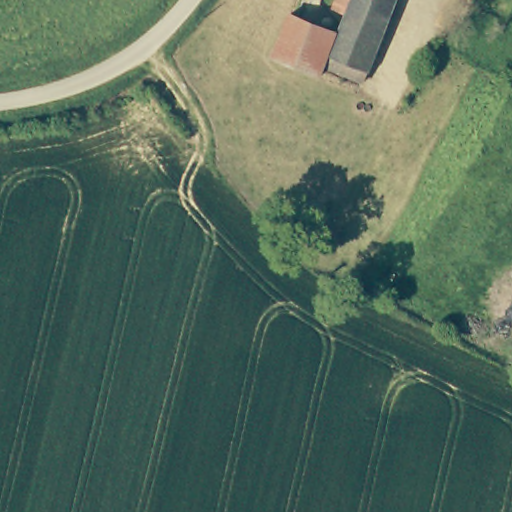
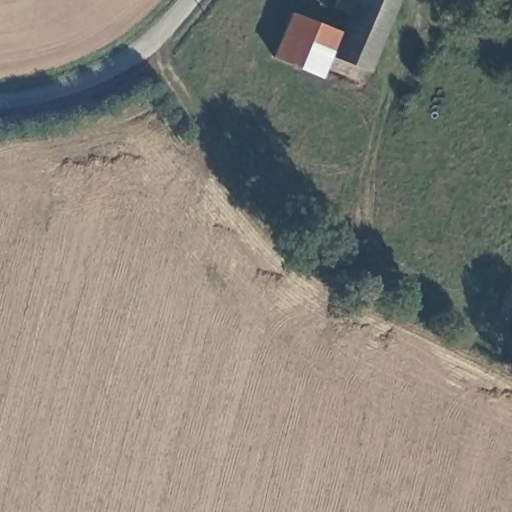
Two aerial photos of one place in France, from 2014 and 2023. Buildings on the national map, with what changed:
unchanged [(347,13),(333,7),(336,0),(396,0),(363,82),(325,67),(347,13)]
unchanged [(272,57),(291,12),(337,32),(320,76),(272,57)]

